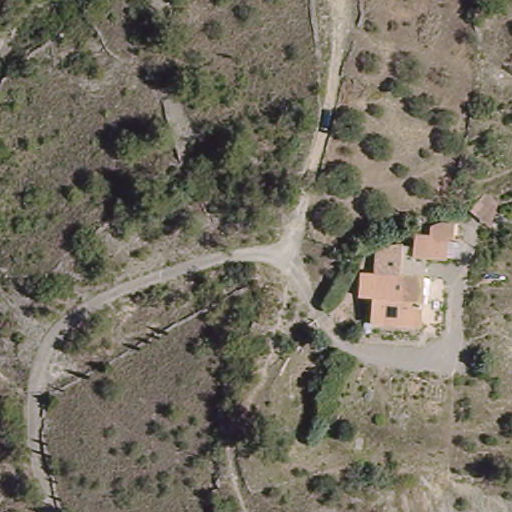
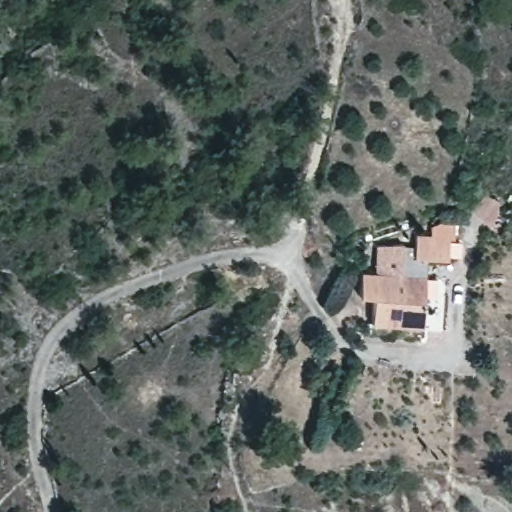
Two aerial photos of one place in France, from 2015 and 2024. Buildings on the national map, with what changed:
unchanged [(371,334),(371,284),(392,284),(392,263),(409,263),(409,242),(444,243),(443,264),(420,263),(419,335),(371,334)]

